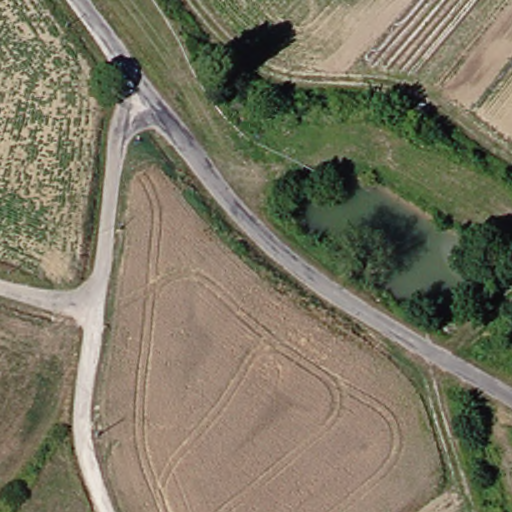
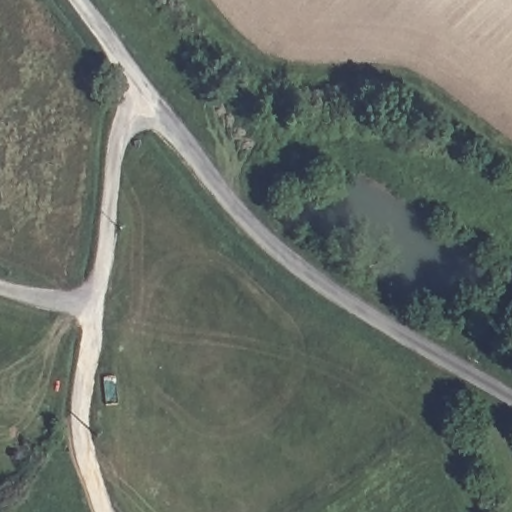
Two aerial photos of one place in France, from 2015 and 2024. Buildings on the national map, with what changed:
[]

